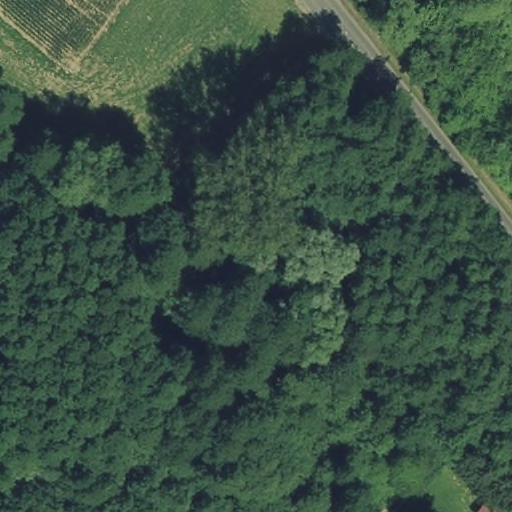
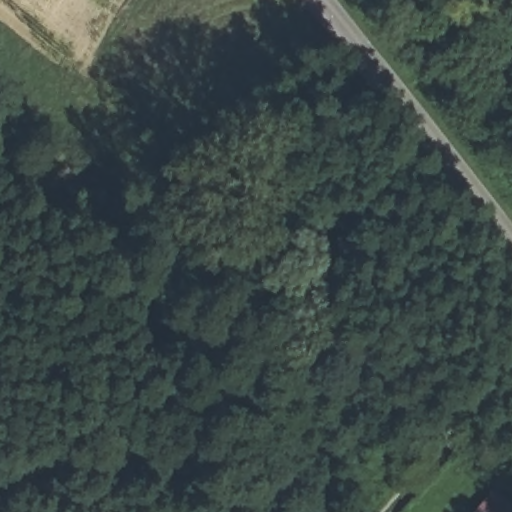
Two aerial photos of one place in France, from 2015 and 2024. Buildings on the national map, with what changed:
unchanged [(485,496),(505,512),(471,512),(485,496)]

